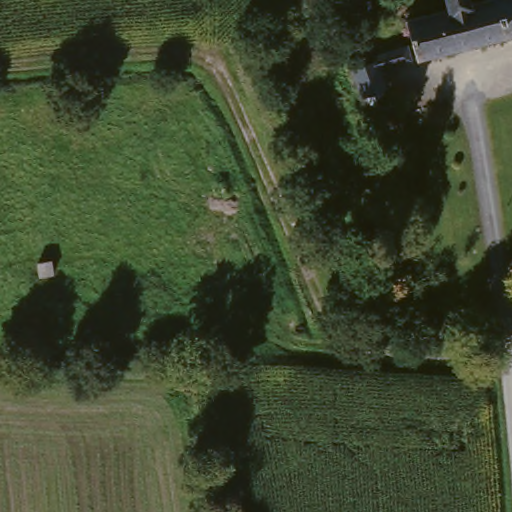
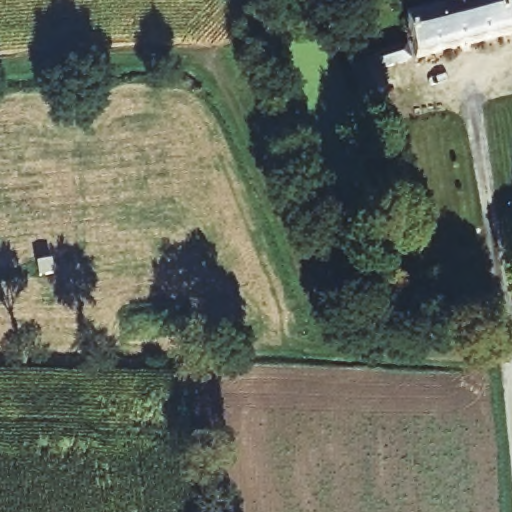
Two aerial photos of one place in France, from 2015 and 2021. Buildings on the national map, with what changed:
unchanged [(512,29),(414,54),(405,16),(447,4),(446,0),(512,0),(512,29)]
unchanged [(371,51),(405,42),(408,55),(380,65),(384,85),(382,86),(383,97),(371,100),(368,91),(362,92),(351,62),(373,57),(371,51)]
unchanged [(51,273),(37,274),(36,261),(51,261),(51,273)]

